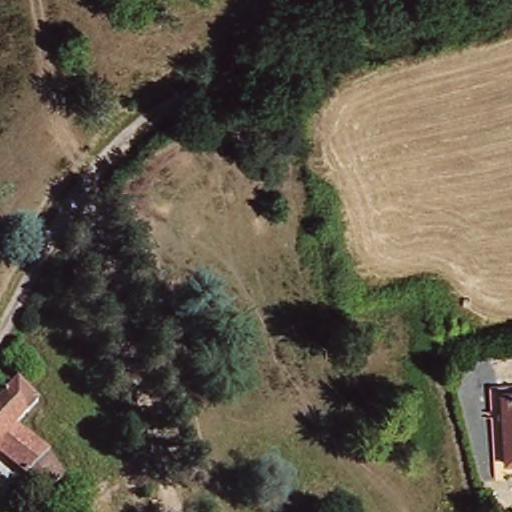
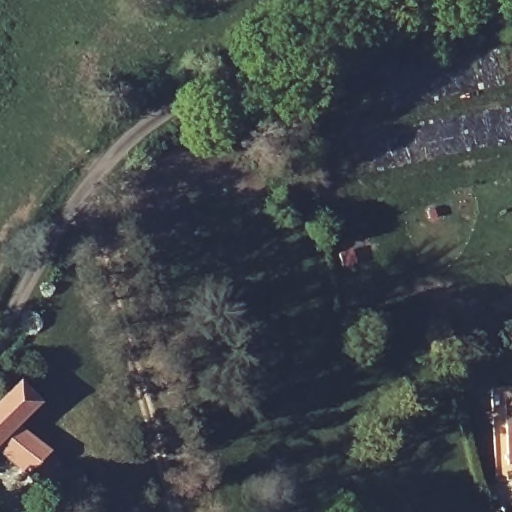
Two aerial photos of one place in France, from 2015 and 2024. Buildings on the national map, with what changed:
unchanged [(12,458),(0,448),(0,399),(19,381),(37,400),(16,422),(48,448),(66,474),(41,489),(31,475),(12,458)]
unchanged [(512,388),(512,470),(504,470),(502,460),(498,461),(495,389),(512,388)]

